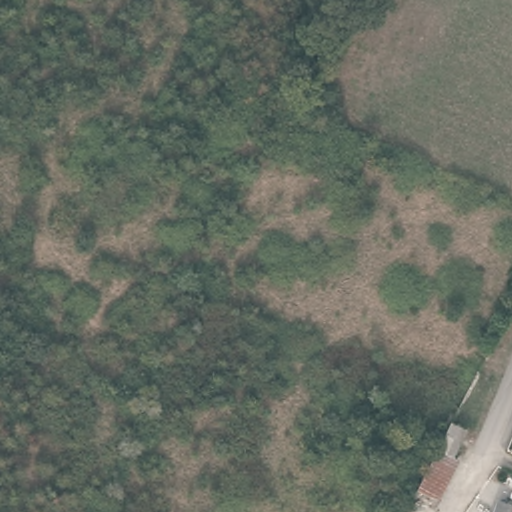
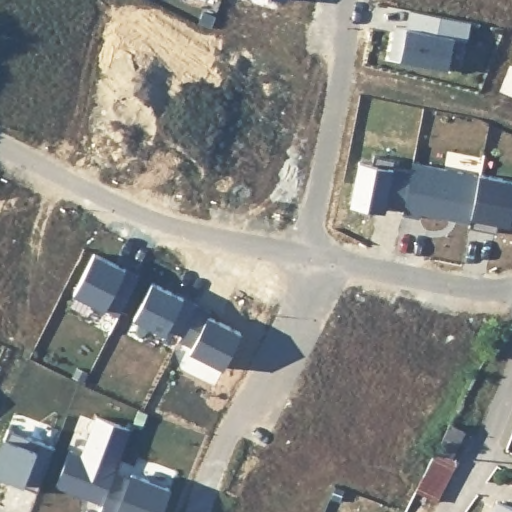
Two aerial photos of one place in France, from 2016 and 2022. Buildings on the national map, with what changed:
new [(396,26),(407,28),(411,10),(471,22),(468,41),(454,38),(448,69),(390,58),(393,39),(396,26)]
new [(360,161),(373,164),(374,155),(395,159),(394,168),(412,171),(405,208),(387,204),(386,211),(351,205),(360,161)]
new [(405,208),(412,171),(413,163),(479,176),(470,222),(421,213),(420,217),(403,214),(405,208)]
new [(479,176),(480,174),(512,180),(512,225),(487,220),(485,231),(469,228),(470,222),(479,176)]
new [(95,253),(139,276),(119,316),(74,294),(95,253)]
new [(153,282),(198,305),(182,335),(169,328),(166,334),(134,318),(153,282)]
new [(182,335),(198,305),(212,312),(210,316),(242,333),(224,369),(191,352),(193,347),(180,341),(182,335)]
new [(57,486),(70,450),(82,455),(97,416),(132,430),(115,474),(103,504),(87,498),(78,494),(57,486)]
new [(9,430),(55,447),(38,493),(22,486),(23,483),(12,479),(9,485),(0,481),(0,454),(9,430)]
unchanged [(444,434),(463,445),(436,493),(417,485),(444,434)]
new [(115,474),(130,480),(132,474),(171,489),(162,512),(101,512),(103,504),(115,474)]
unchanged [(512,512),(494,512),(499,501),(512,507),(512,512)]

